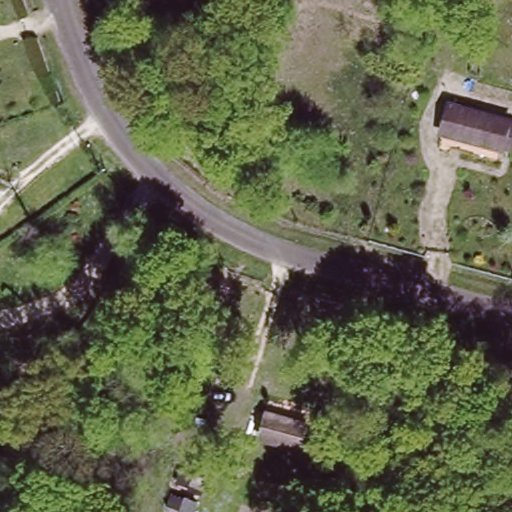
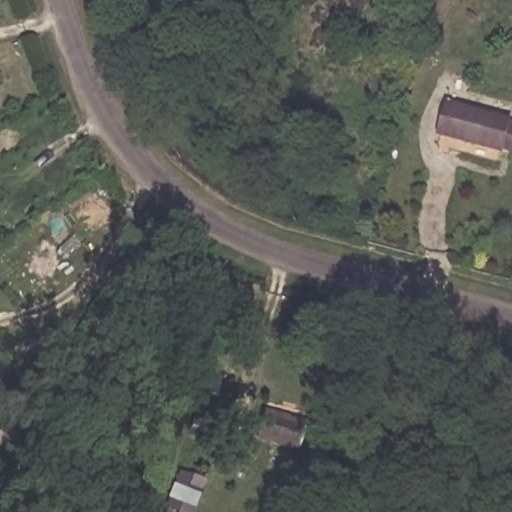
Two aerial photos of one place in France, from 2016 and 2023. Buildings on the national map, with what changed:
unchanged [(512,120),(512,146),(452,130),(439,127),(447,99),(460,102),(507,115),(506,118),(512,120)]
unchanged [(300,466),(242,447),(252,416),(308,424),(300,466)]
unchanged [(199,453),(208,455),(205,470),(195,468),(199,453)]
unchanged [(197,495),(187,492),(192,475),(202,478),(197,495)]

